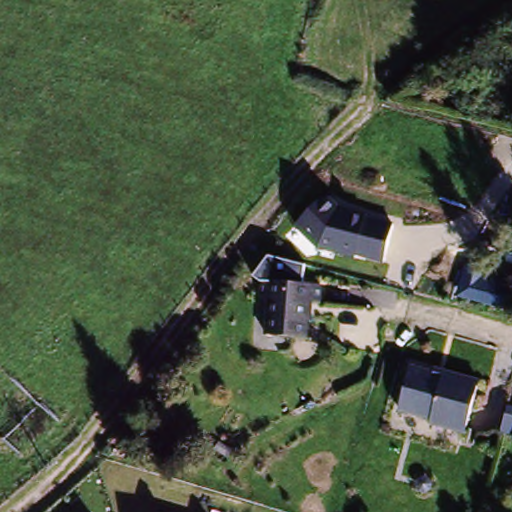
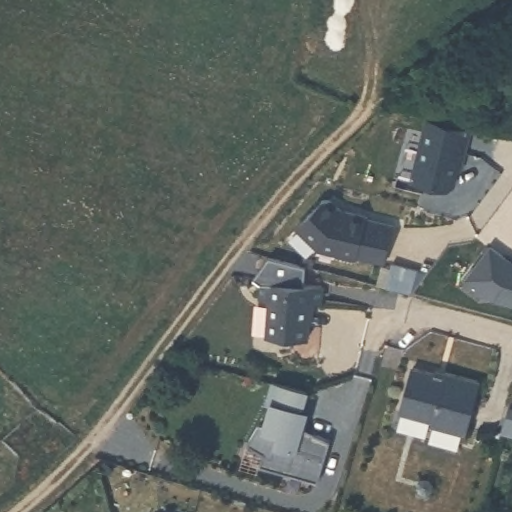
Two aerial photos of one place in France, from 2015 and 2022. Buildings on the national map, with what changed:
new [(457,170),(453,185),(447,189),(413,180),(428,119),(468,128),(466,136),(468,136),(464,152),(460,171),(457,170)]
unchanged [(385,262),(321,249),(301,226),(329,199),(349,215),(394,225),(385,262)]
unchanged [(306,267),(304,287),(265,284),(256,277),(271,257),(306,267)]
unchanged [(479,297),(483,279),(512,287),(512,293),(509,305),(479,297)]
unchanged [(326,290),(324,307),(314,306),(311,342),(270,337),(274,301),(264,300),(265,284),(326,290)]
unchanged [(466,427),(432,418),(433,414),(401,405),(414,360),(436,367),(437,362),(446,366),(481,375),(466,427)]
new [(311,390),(306,405),(311,406),(306,425),(330,438),(319,480),(262,461),(266,450),(249,440),(261,421),(264,421),(269,400),(264,401),(271,376),(311,390)]
unchanged [(512,416),(512,433),(508,432),(512,416)]

